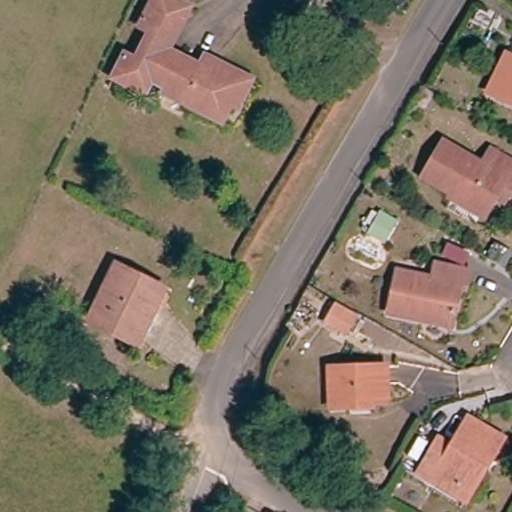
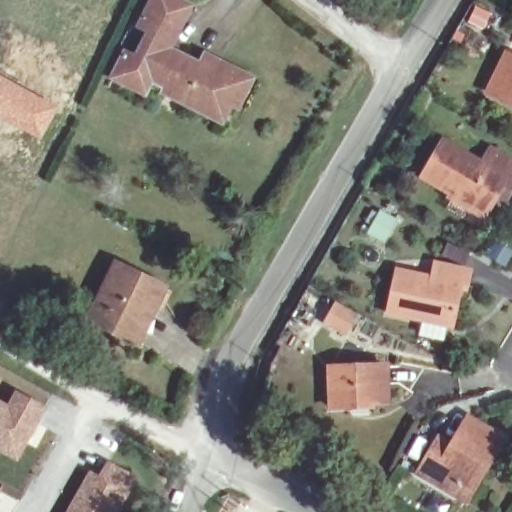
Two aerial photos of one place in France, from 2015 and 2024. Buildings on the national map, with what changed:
unchanged [(159,81),(150,98),(115,79),(125,61),(135,65),(156,29),(146,24),(158,0),(177,0),(196,9),(191,16),(180,35),(169,51),(202,67),(207,57),(250,82),(234,109),(225,122),(175,97),(178,92),(159,81)]
unchanged [(487,98),(505,57),(512,61),(512,110),(487,98)]
new [(40,141),(0,119),(0,73),(59,107),(40,141)]
unchanged [(494,195),(482,217),(447,196),(450,191),(423,175),(442,140),(481,162),(490,149),(512,162),(512,181),(503,199),(494,195)]
unchanged [(381,213),(401,222),(389,244),(367,236),(381,213)]
unchanged [(510,252),(502,266),(488,257),(497,244),(510,252)]
unchanged [(422,328),(423,322),(391,315),(398,274),(432,281),(435,267),(469,272),(466,291),(461,291),(455,325),(453,335),(422,328)]
unchanged [(130,336),(91,318),(111,273),(157,296),(147,316),(137,340),(130,336)]
unchanged [(347,340),(327,328),(341,308),(362,320),(347,340)]
unchanged [(384,360),(384,391),(328,396),(327,361),(384,360)]
new [(0,400),(8,405),(15,391),(47,408),(17,462),(0,453),(0,400)]
unchanged [(426,482),(418,475),(437,443),(450,451),(465,423),(500,443),(485,470),(464,505),(426,482)]
new [(90,471),(100,477),(102,472),(109,462),(140,480),(121,512),(66,512),(90,471)]
new [(0,491),(0,489),(1,490),(0,491)]

